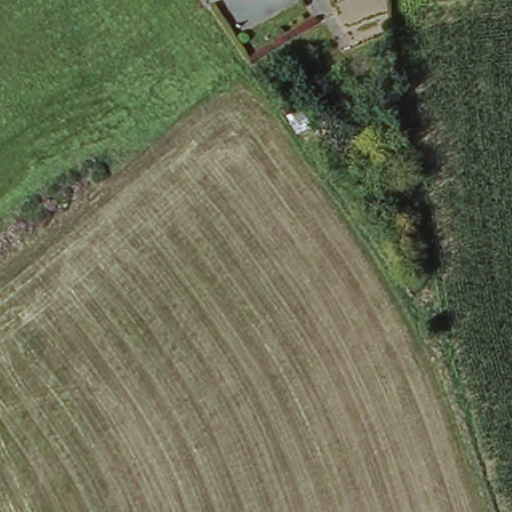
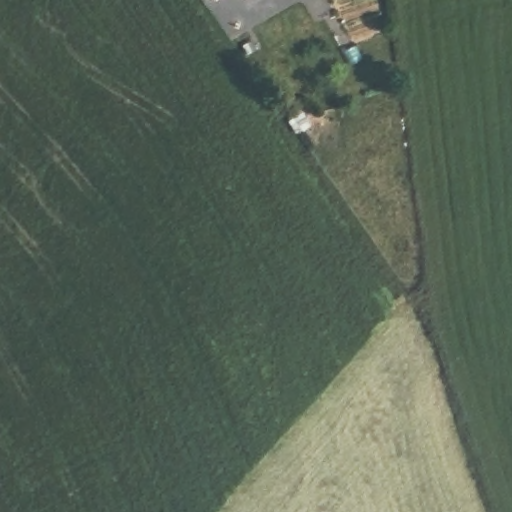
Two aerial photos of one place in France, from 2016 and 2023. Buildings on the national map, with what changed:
unchanged [(211,0),(216,0),(212,3),(211,0)]

